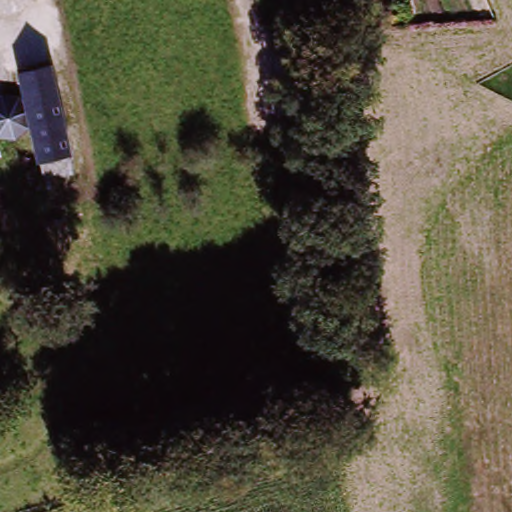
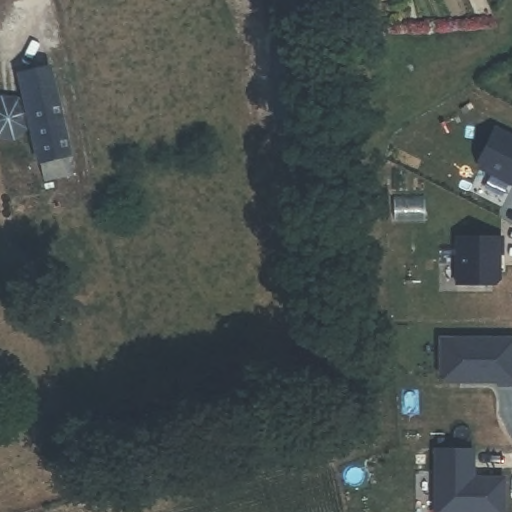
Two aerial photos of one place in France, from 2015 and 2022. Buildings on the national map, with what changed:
unchanged [(306,55),(309,149),(278,150),(276,57),(306,55)]
unchanged [(53,74),(72,162),(44,169),(24,80),(53,74)]
unchanged [(18,103),(31,118),(27,137),(15,146),(13,148),(0,145),(0,99),(6,100),(18,103)]
new [(512,128),(512,186),(481,170),(479,164),(501,122),(512,128)]
new [(458,237),(504,237),(503,253),(501,253),(500,278),(495,283),(458,283),(458,237)]
unchanged [(324,286),(326,339),(283,340),(281,287),(324,286)]
new [(512,338),(512,384),(498,383),(498,382),(446,381),(441,374),(441,338),(512,338)]
new [(434,446),(469,446),(469,476),(503,477),(503,512),(434,512),(434,446)]

